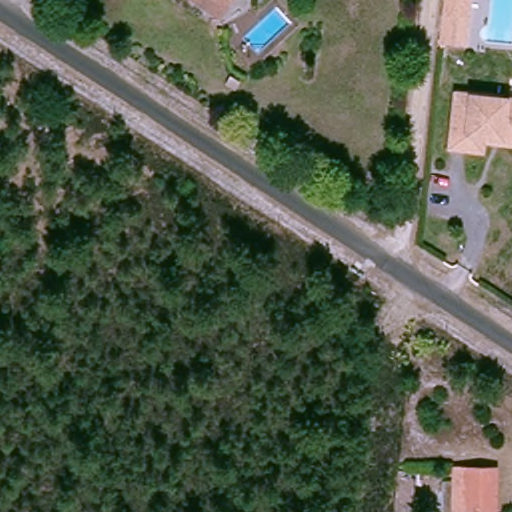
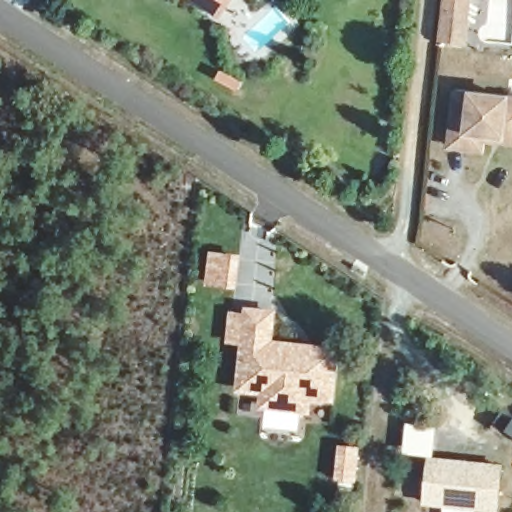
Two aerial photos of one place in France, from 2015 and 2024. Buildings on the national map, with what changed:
unchanged [(202,0),(217,0),(211,6),(202,0)]
unchanged [(447,36),(451,0),(474,0),(469,40),(447,36)]
unchanged [(467,145),(467,155),(449,153),(456,99),(512,106),(512,149),(467,145)]
new [(205,285),(209,252),(240,255),(236,288),(205,285)]
new [(274,310),(272,340),(337,348),(333,402),(310,402),(308,414),(258,409),(259,395),(236,392),(239,344),(227,342),(229,312),(243,312),(244,308),(274,310)]
new [(427,457),(502,465),(496,512),(491,512),(421,505),(427,457)]
demolished [(500,512),(451,512),(450,465),(500,467),(500,512)]

